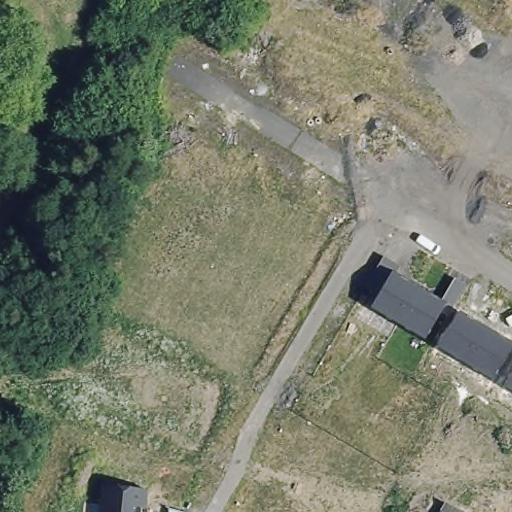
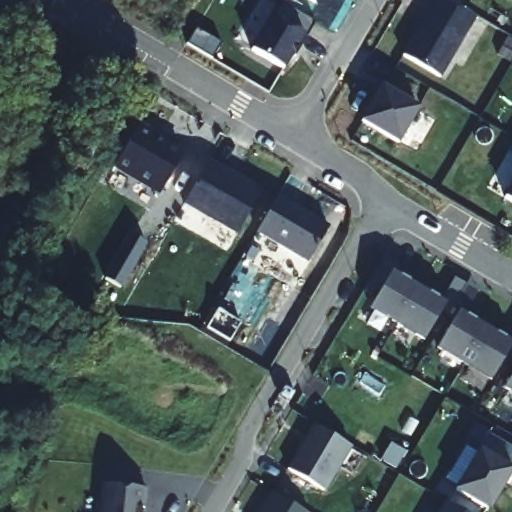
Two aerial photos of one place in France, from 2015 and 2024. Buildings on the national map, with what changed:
new [(311,0),(317,0),(316,2),(311,0)]
new [(436,0),(448,0),(476,16),(439,77),(403,56),(436,0)]
new [(283,69),(251,51),(272,16),(273,17),(282,2),(316,22),(306,37),(296,55),(293,53),(303,36),(283,69)]
new [(369,108),(371,109),(376,101),(374,100),(381,87),(418,108),(398,142),(361,122),(369,108)]
new [(138,125),(153,134),(152,137),(182,154),(159,192),(113,166),(138,125)]
new [(183,202),(208,161),(261,192),(236,234),(183,202)]
new [(512,185),(512,202),(504,198),(512,185)]
new [(308,262),(256,232),(277,197),(329,227),(308,262)]
unchanged [(422,338),(366,308),(389,268),(444,300),(422,338)]
unchanged [(457,310),(512,341),(491,378),(437,346),(457,310)]
unchanged [(512,392),(504,387),(512,374),(512,392)]
unchanged [(314,425),(351,447),(324,490),(287,470),(314,425)]
new [(465,445),(478,452),(479,450),(481,451),(491,435),(512,447),(512,481),(509,487),(504,483),(500,484),(486,508),(455,489),(457,487),(444,480),(465,445)]
unchanged [(101,487),(143,491),(142,512),(99,512),(101,487)]
unchanged [(274,493),(305,512),(262,512),(274,493)]
unchanged [(444,503),(461,512),(438,512),(444,503)]

